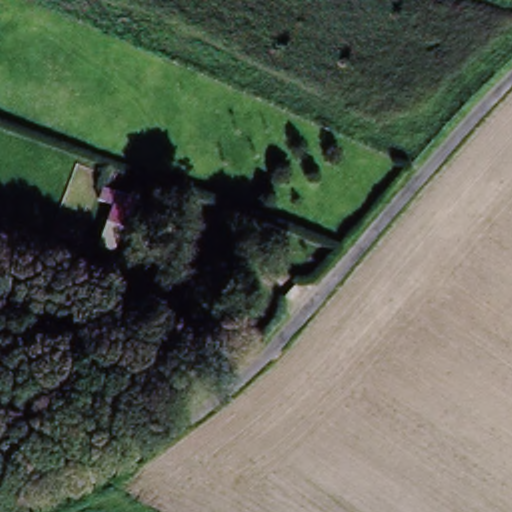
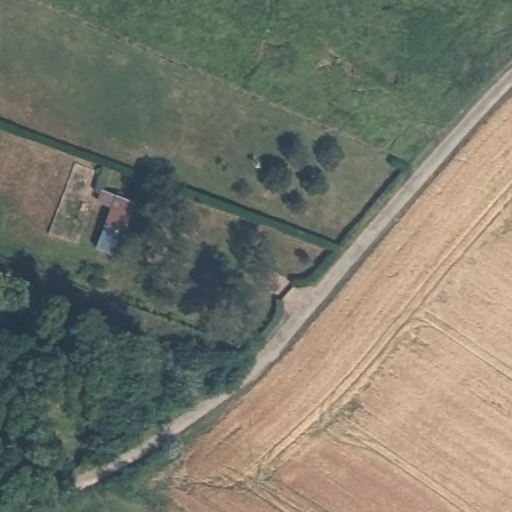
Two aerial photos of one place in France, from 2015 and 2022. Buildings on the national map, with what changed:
unchanged [(99,232),(102,225),(109,205),(96,200),(100,190),(131,202),(120,231),(116,240),(99,232)]

